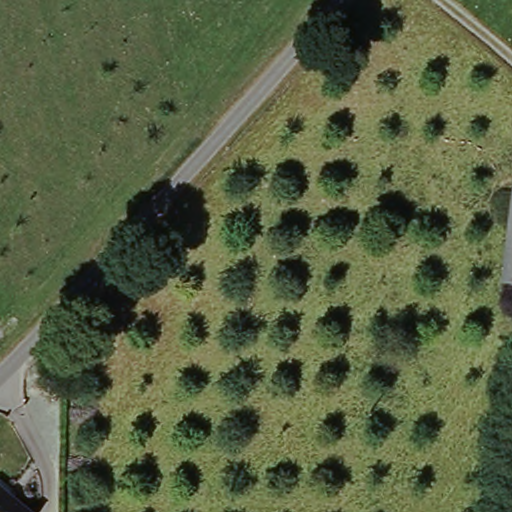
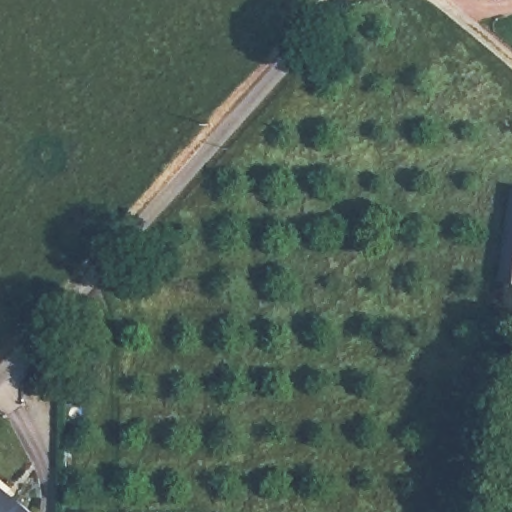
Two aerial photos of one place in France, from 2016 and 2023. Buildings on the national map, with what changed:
unchanged [(504,281),(512,208),(512,282),(504,281)]
unchanged [(0,490),(26,512),(0,512),(0,490)]

